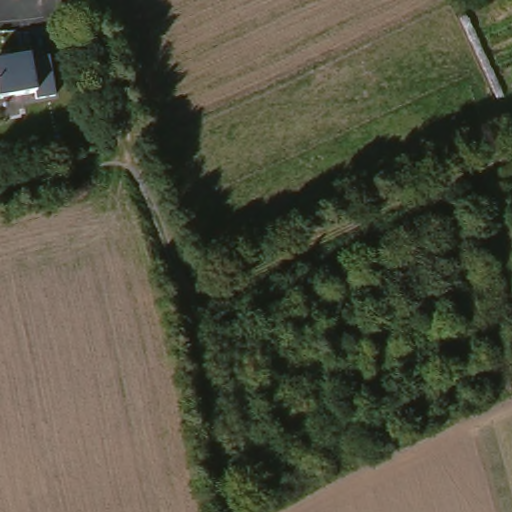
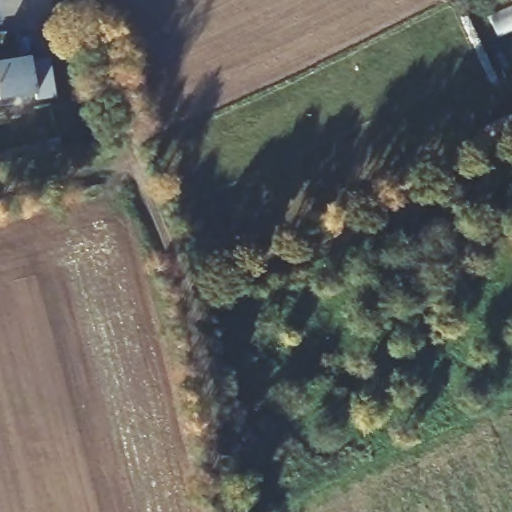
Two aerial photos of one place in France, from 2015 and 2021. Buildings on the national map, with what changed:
unchanged [(54,98),(35,101),(34,94),(0,100),(0,61),(19,58),(20,63),(48,59),(54,98)]

